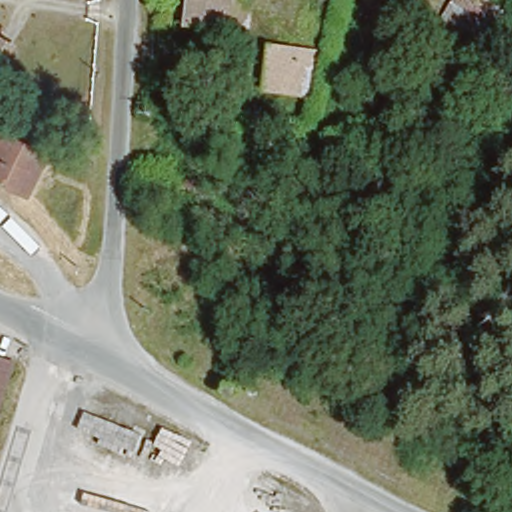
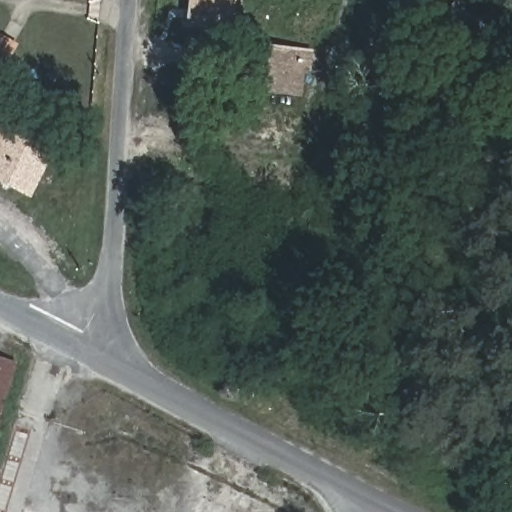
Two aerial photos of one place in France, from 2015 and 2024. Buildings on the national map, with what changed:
unchanged [(191,24),(194,0),(234,0),(231,28),(191,24)]
unchanged [(0,50),(0,37),(5,41),(0,50)]
unchanged [(313,54),(311,68),(306,67),(303,96),(271,92),(275,50),(303,53),(313,54)]
unchanged [(25,192),(0,179),(0,128),(45,151),(25,192)]
unchanged [(206,184),(202,201),(176,194),(181,177),(206,184)]
unchanged [(0,406),(0,359),(12,363),(0,406)]
unchanged [(225,399),(220,407),(212,404),(217,395),(225,399)]

